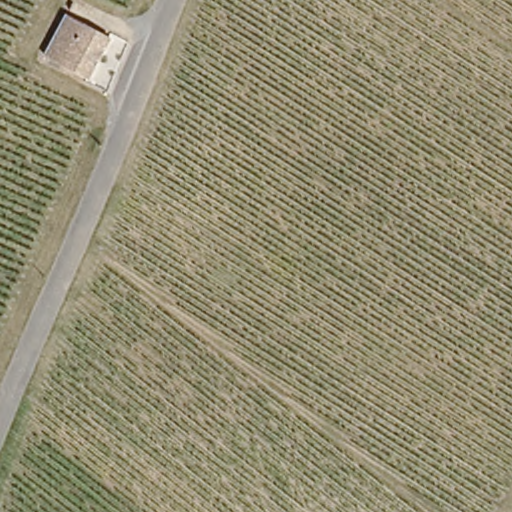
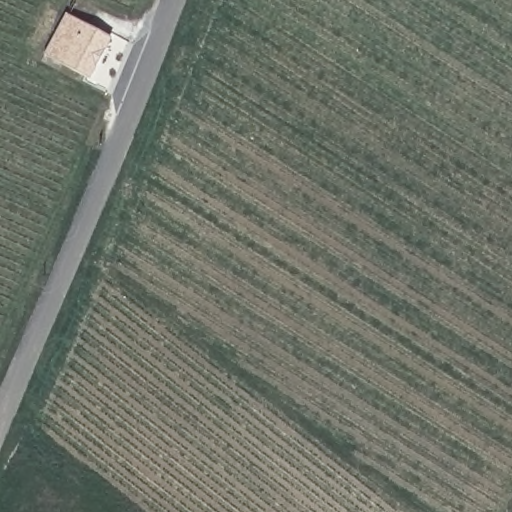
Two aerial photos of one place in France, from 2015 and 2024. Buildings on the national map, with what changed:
unchanged [(91,77),(51,56),(47,54),(68,17),(73,19),(112,41),(91,77)]

